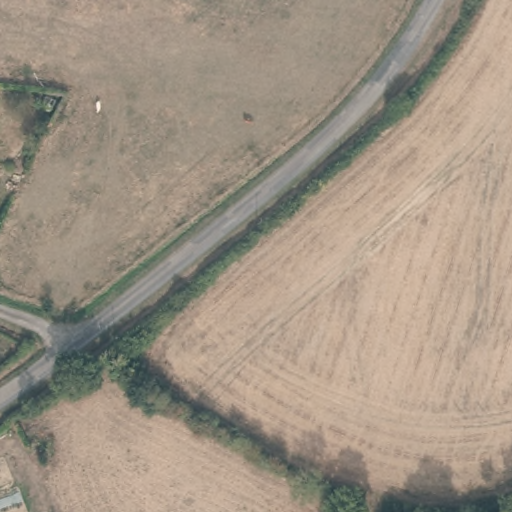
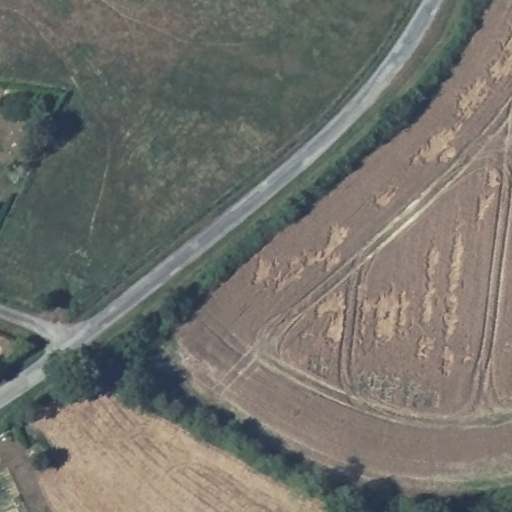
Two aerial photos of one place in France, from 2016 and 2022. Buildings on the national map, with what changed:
[]

